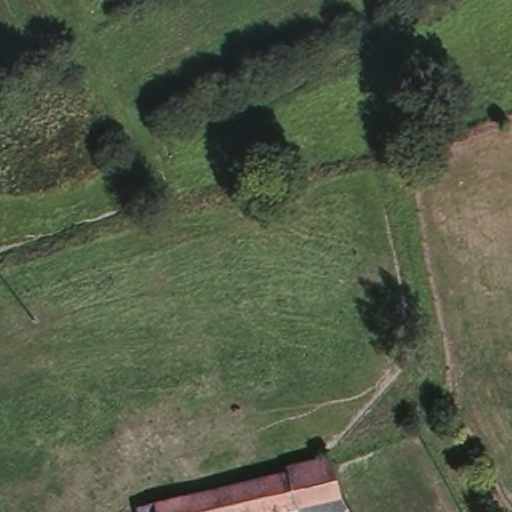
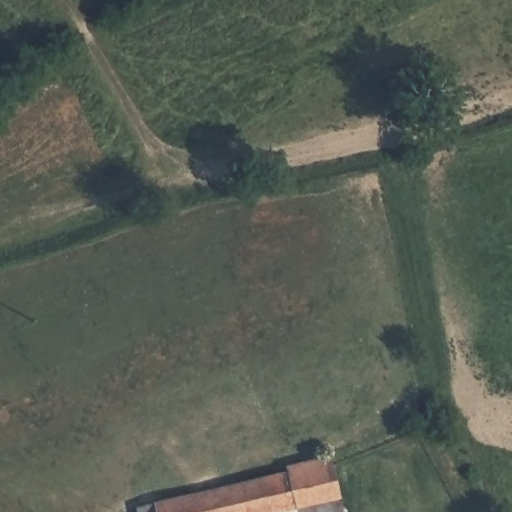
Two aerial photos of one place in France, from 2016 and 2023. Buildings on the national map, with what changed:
unchanged [(288,472),(288,462),(328,453),(340,497),(295,506),(288,472)]
unchanged [(288,472),(295,506),(265,512),(137,512),(135,504),(288,472)]

